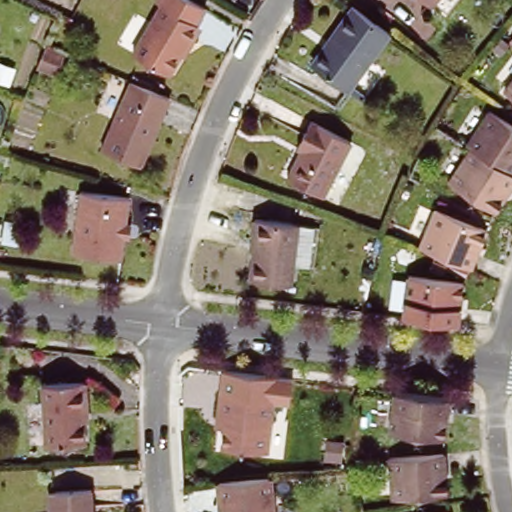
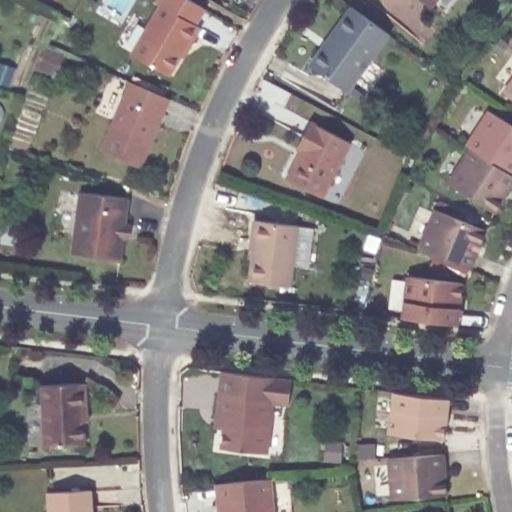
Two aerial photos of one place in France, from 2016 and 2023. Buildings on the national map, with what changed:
unchanged [(195,24),(199,26),(169,75),(132,53),(162,4),(157,2),(159,0),(193,0),(205,7),(195,24)]
unchanged [(333,31),(355,2),(393,30),(350,88),(316,63),(312,60),(333,31)]
unchanged [(47,38),(69,48),(67,54),(60,69),(37,60),(44,44),(47,38)]
unchanged [(507,85),(512,79),(512,89),(507,85)]
unchanged [(138,166),(99,149),(130,80),(169,97),(138,166)]
unchanged [(474,148),(468,144),(492,109),(512,122),(512,174),(474,148)]
unchanged [(352,139),(323,193),(288,174),(303,147),(299,144),(313,118),(352,139)]
unchanged [(495,213),(450,182),(474,148),(512,174),(512,188),(510,192),(505,198),(495,213)]
unchanged [(128,236),(122,236),(120,256),(72,250),(80,190),(126,195),(123,219),(130,221),(128,236)]
unchanged [(475,267),(425,246),(440,207),(492,229),(485,245),(481,253),(475,267)]
unchanged [(287,282),(248,277),(253,239),(250,238),(252,216),(295,222),(287,282)]
unchanged [(460,322),(405,315),(412,275),(465,282),(463,297),(462,306),(460,322)]
unchanged [(85,419),(87,442),(46,444),(43,382),(87,380),(89,408),(90,418),(85,419)]
unchanged [(280,395),(274,447),(227,440),(230,422),(222,421),(224,411),(227,388),(280,395)]
unchanged [(447,438),(393,431),(398,390),(452,398),(450,415),(450,423),(447,438)]
unchanged [(447,472),(448,487),(394,491),(390,450),(445,446),(446,463),(447,472)]
unchanged [(217,479),(272,475),(274,512),(229,512),(228,511),(220,511),(219,503),(217,479)]
unchanged [(49,512),(47,488),(92,486),(94,512),(49,512)]
unchanged [(450,512),(416,512),(449,505),(450,512)]

